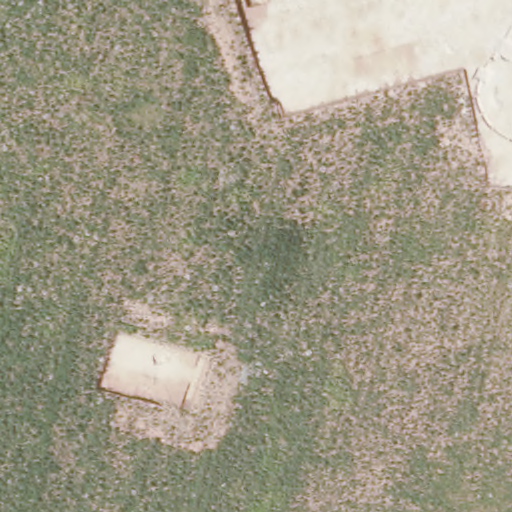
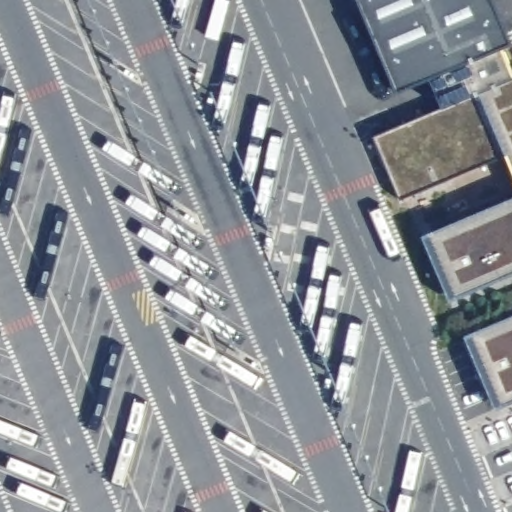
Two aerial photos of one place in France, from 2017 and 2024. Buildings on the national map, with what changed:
new [(403,200),(378,139),(447,110),(434,83),(400,97),(361,0),(496,0),(512,37),(512,170),(506,156),(403,200)]
new [(432,236),(512,204),(512,276),(458,299),(432,236)]
new [(477,335),(512,321),(512,400),(505,403),(477,335)]

